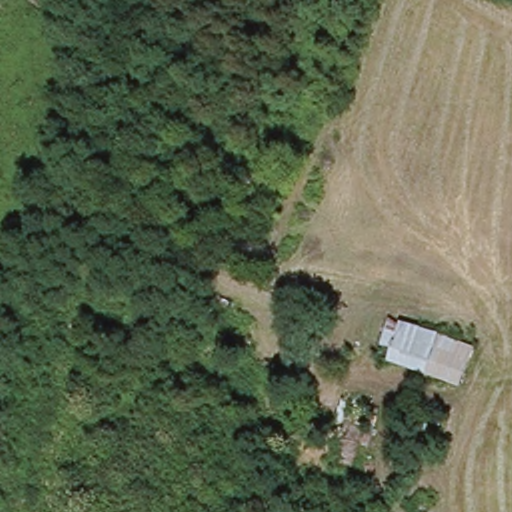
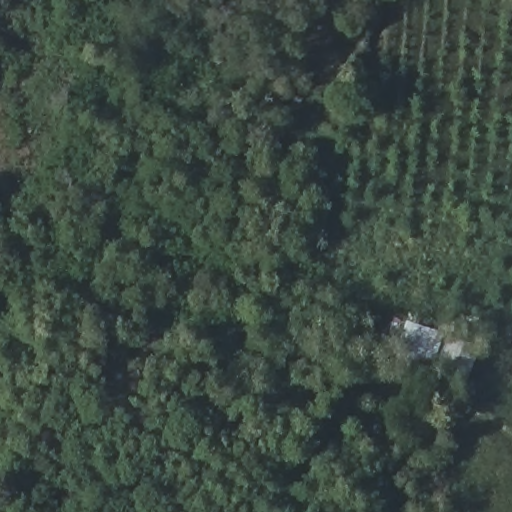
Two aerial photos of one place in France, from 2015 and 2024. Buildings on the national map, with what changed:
unchanged [(465,335),(463,349),(477,355),(467,392),(427,379),(442,329),(465,335)]
unchanged [(59,512),(53,512),(55,499),(52,499),(54,487),(63,488),(59,512)]

